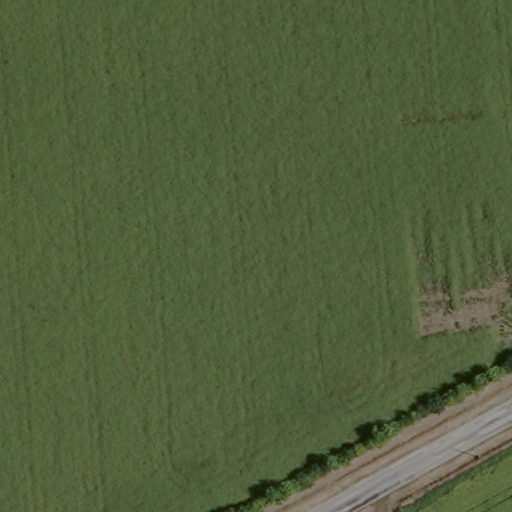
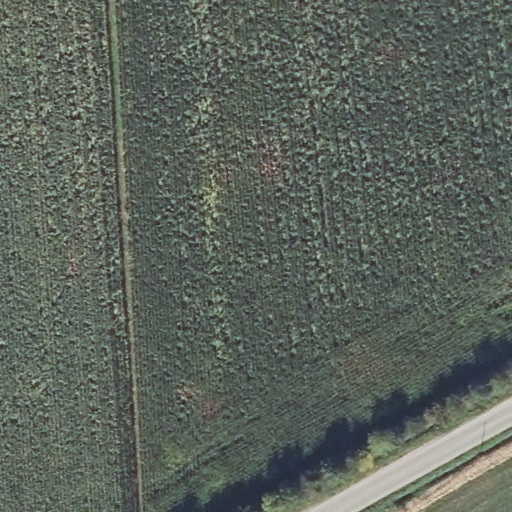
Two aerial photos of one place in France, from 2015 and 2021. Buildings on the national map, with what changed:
[]

